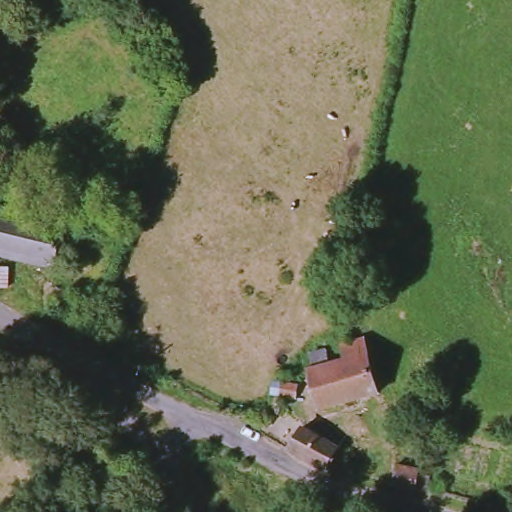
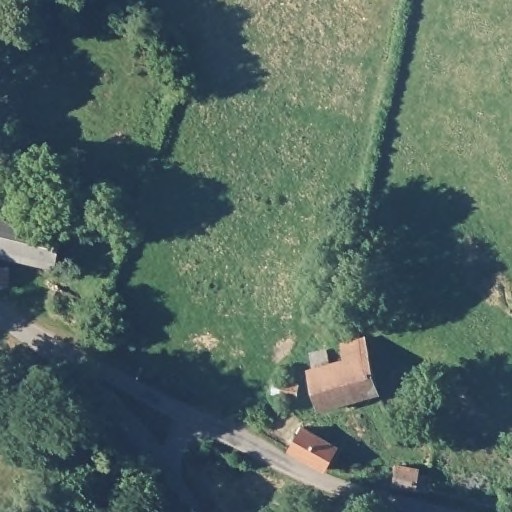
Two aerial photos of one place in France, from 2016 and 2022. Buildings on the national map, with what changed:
unchanged [(68,227),(56,272),(0,256),(0,208),(68,227)]
unchanged [(15,270),(17,290),(0,292),(0,271),(15,270)]
unchanged [(330,350),(334,363),(350,360),(345,345),(367,339),(383,395),(320,413),(307,372),(317,370),(312,355),(330,350)]
unchanged [(302,385),(298,403),(270,398),(273,380),(302,385)]
unchanged [(298,426),(338,450),(325,472),(285,448),(298,426)]
unchanged [(423,464),(422,471),(432,472),(430,487),(395,484),(397,462),(423,464)]

